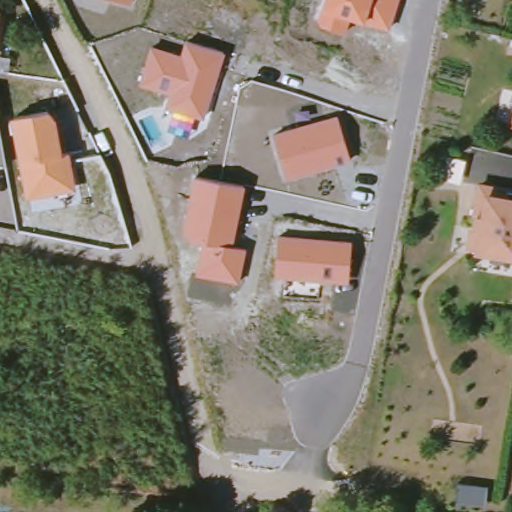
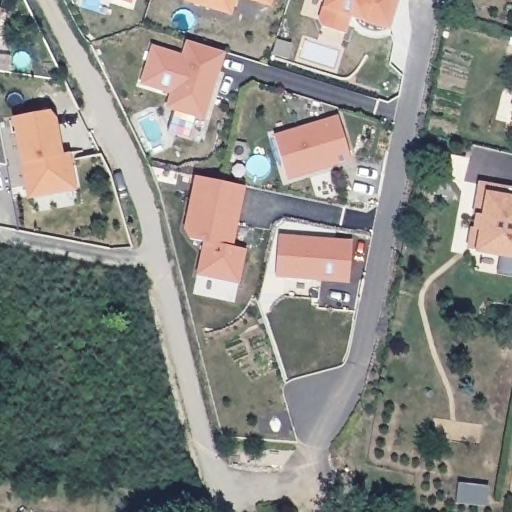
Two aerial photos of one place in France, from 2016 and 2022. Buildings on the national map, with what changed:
unchanged [(118,0),(131,0),(129,4),(118,0)]
new [(184,0),(235,0),(230,14),(184,0)]
new [(250,0),(271,0),(269,6),(250,0)]
unchanged [(350,19),(346,34),(320,25),(318,19),(324,0),(400,0),(391,31),(350,19)]
unchanged [(4,14),(0,44),(0,13),(4,14)]
unchanged [(224,54),(203,121),(194,118),(188,139),(166,131),(173,112),(164,109),(168,94),(140,85),(150,47),(179,55),(184,40),(224,54)]
unchanged [(11,115),(48,109),(54,114),(61,154),(68,154),(75,189),(28,199),(20,160),(11,115)]
unchanged [(338,114),(351,160),(286,179),(271,134),(338,114)]
unchanged [(512,115),(512,124),(510,123),(512,115)]
unchanged [(5,164),(0,164),(0,138),(5,164)]
unchanged [(244,186),(231,247),(245,250),(238,283),(194,273),(201,244),(195,244),(183,230),(195,176),(244,186)]
unchanged [(512,258),(498,255),(463,249),(467,228),(469,229),(472,215),(469,215),(475,185),(512,192),(512,258)]
unchanged [(351,240),(349,282),(274,275),(278,235),(351,240)]

